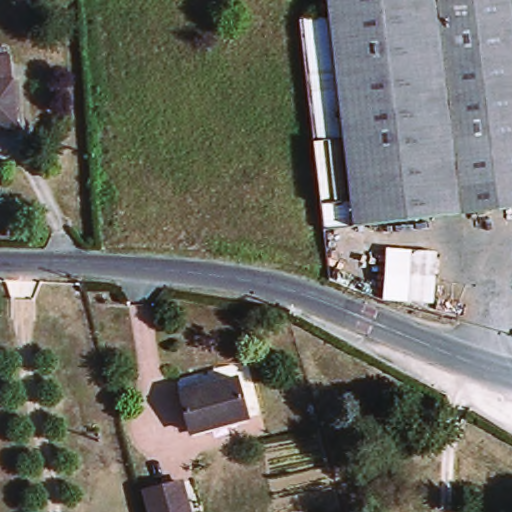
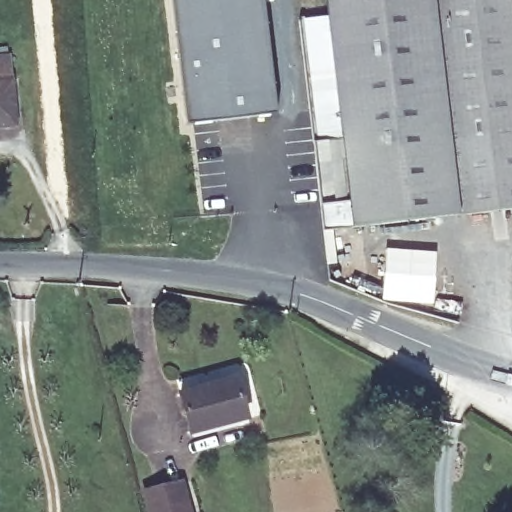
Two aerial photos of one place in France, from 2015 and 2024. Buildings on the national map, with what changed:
new [(179,128),(165,0),(256,0),(268,119),(179,128)]
unchanged [(369,201),(334,205),(313,23),(350,18),(348,0),(512,0),(512,212),(371,225),(369,201)]
unchanged [(20,55),(23,91),(23,127),(0,128),(0,55),(20,55)]
new [(385,246),(436,251),(432,306),(381,300),(385,246)]
unchanged [(249,375),(261,416),(204,434),(193,393),(249,375)]
unchanged [(196,482),(203,512),(166,512),(160,491),(196,482)]

